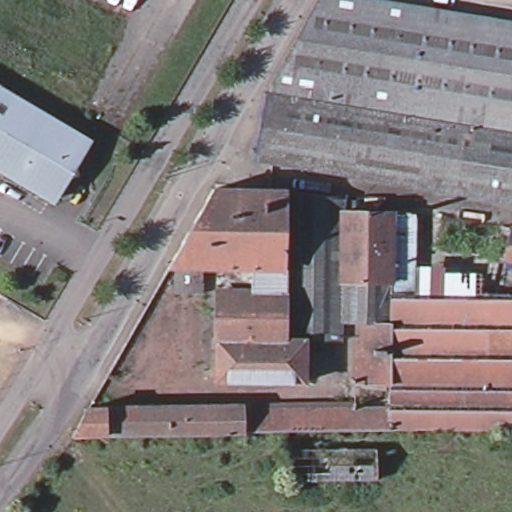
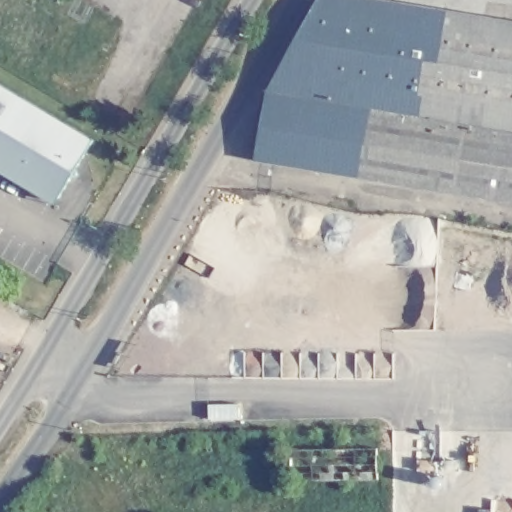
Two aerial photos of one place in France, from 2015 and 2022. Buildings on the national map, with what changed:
unchanged [(255,157),(266,87),(268,87),(316,0),(397,0),(512,19),(512,198),(287,162),(255,157)]
unchanged [(46,116),(9,180),(0,174),(0,88),(46,116)]
unchanged [(46,116),(90,142),(73,168),(75,177),(67,179),(54,200),(45,201),(9,180),(46,116)]
demolished [(168,262),(200,205),(210,185),(286,185),(286,262),(218,262),(204,262),(204,272),(175,272),(176,262),(168,262)]
demolished [(315,262),(286,262),(286,185),(317,190),(315,262)]
demolished [(342,336),(305,336),(285,336),(286,262),(315,262),(317,190),(345,194),(345,206),(342,205),(342,276),(342,317),(342,336)]
demolished [(390,405),(390,379),(357,380),(357,318),(342,317),(342,276),(342,205),(345,206),(393,207),(416,208),(416,257),(417,270),(512,270),(512,424),(390,422),(390,405)]
demolished [(446,210),(512,223),(512,256),(440,241),(446,210)]
demolished [(285,336),(305,336),(305,377),(215,377),(218,273),(218,262),(286,262),(285,336)]
demolished [(74,430),(89,404),(243,401),(243,407),(244,427),(74,430)]
demolished [(390,405),(390,422),(390,425),(366,426),(244,427),(243,407),(390,405)]
unchanged [(376,444),(377,479),(304,482),(305,446),(376,444)]

